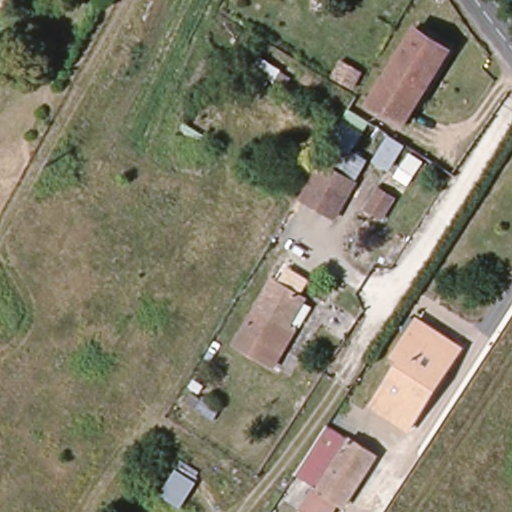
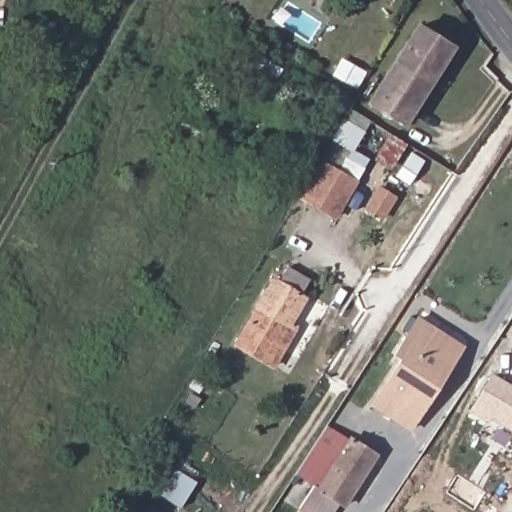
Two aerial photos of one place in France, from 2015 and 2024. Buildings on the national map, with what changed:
unchanged [(408,122),(375,101),(421,25),(453,47),(408,122)]
unchanged [(324,160),(335,140),(347,123),(365,132),(356,151),(372,157),(358,181),(338,219),(298,199),(324,160)]
unchanged [(402,183),(391,176),(402,157),(415,163),(402,183)]
unchanged [(377,219),(361,207),(373,188),(390,198),(377,219)]
unchanged [(301,286),(309,292),(292,317),(298,322),(277,357),(243,335),(282,273),(301,286)]
unchanged [(370,402),(398,359),(391,354),(416,317),(453,340),(463,347),(437,386),(410,427),(370,402)]
new [(489,418),(487,422),(469,412),(493,373),(512,385),(512,433),(489,418)]
unchanged [(335,423),(384,456),(352,505),(347,502),(339,512),(310,512),(306,510),(321,486),(303,474),(335,423)]

